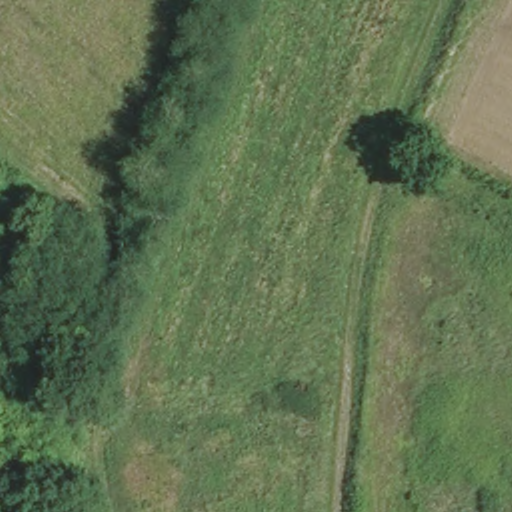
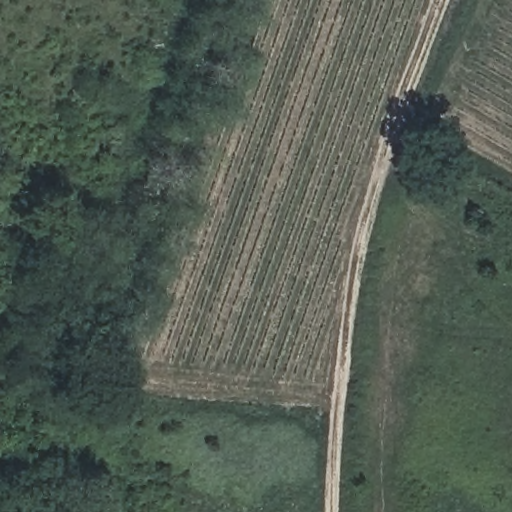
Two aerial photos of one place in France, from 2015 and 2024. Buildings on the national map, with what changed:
unchanged [(77,388),(60,395),(53,377),(70,370),(77,388)]

